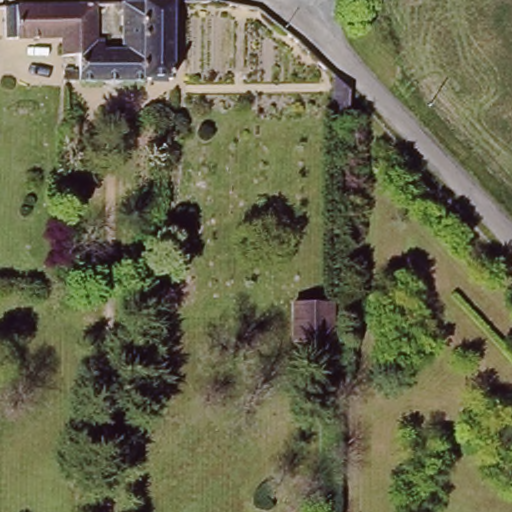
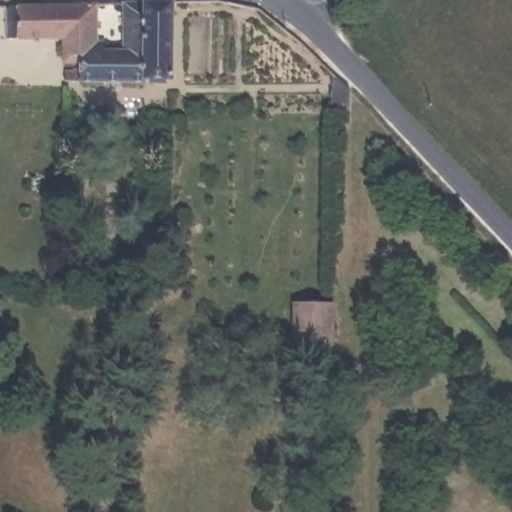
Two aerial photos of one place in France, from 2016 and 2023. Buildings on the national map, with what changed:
unchanged [(141,78),(141,81),(58,81),(59,69),(73,69),(73,54),(58,54),(59,36),(1,36),(1,6),(90,4),(91,38),(100,38),(100,48),(118,48),(116,3),(168,1),(167,78),(141,78)]
unchanged [(350,89),(349,108),(334,107),(334,73),(350,89)]
unchanged [(293,340),(294,301),(331,302),(331,340),(293,340)]

